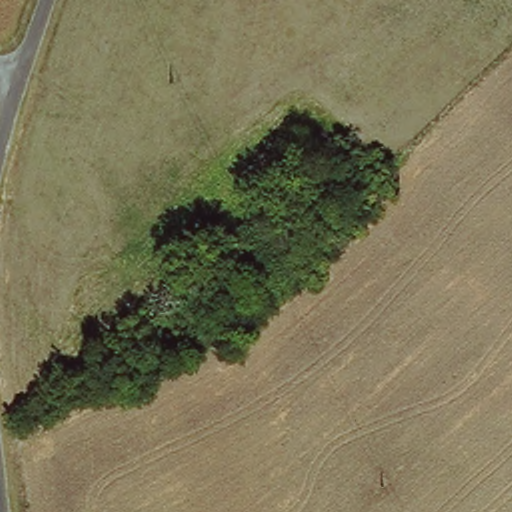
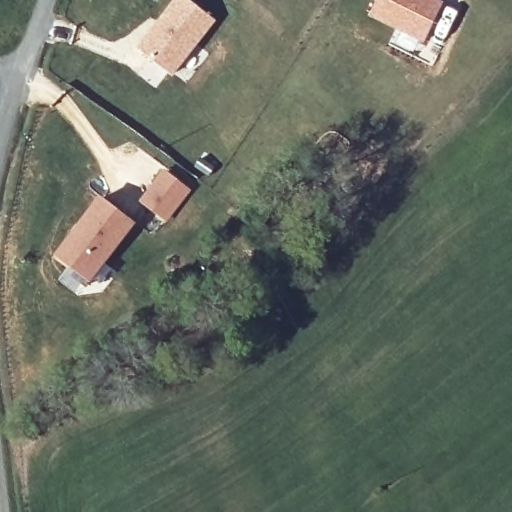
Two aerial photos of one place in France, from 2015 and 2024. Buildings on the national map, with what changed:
new [(192,0),(218,20),(174,76),(136,46),(173,0),(192,0)]
new [(442,0),(445,1),(424,43),(368,14),(375,0),(442,0)]
new [(164,168),(191,188),(167,222),(138,200),(164,168)]
new [(99,195),(137,223),(105,266),(77,295),(56,279),(65,267),(51,255),(99,195)]

